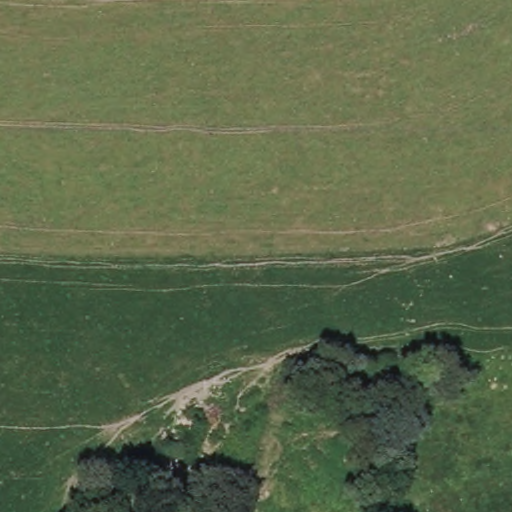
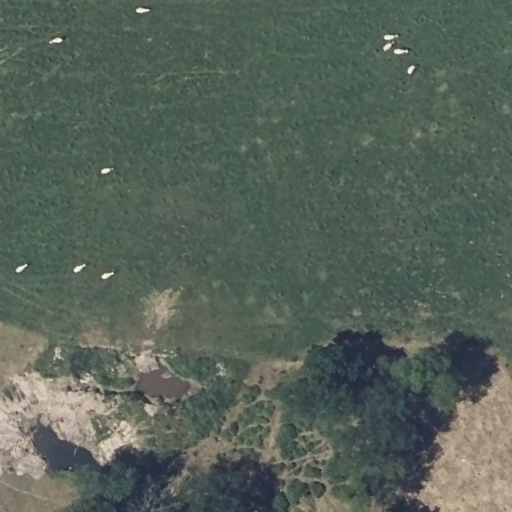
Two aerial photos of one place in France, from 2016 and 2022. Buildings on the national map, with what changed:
[]

